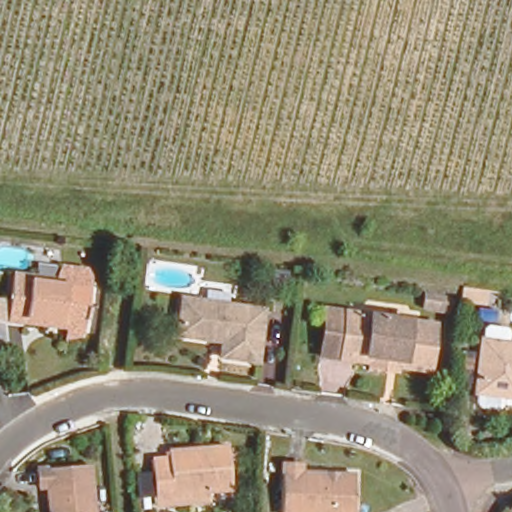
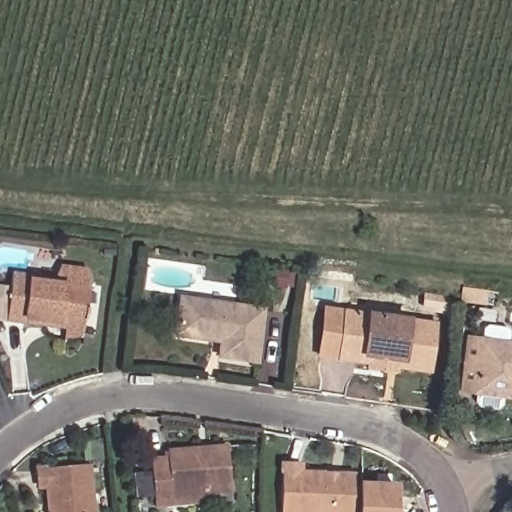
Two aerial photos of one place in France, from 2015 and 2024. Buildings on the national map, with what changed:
unchanged [(71,328),(61,327),(29,322),(28,327),(12,325),(13,320),(18,281),(18,277),(35,280),(34,283),(61,287),(68,270),(95,274),(93,291),(90,310),(94,310),(93,321),(89,321),(88,330),(87,340),(69,342),(71,328)]
unchanged [(486,290),(484,303),(458,300),(460,286),(486,290)]
unchanged [(455,300),(453,315),(425,312),(427,296),(455,300)]
unchanged [(177,336),(182,299),(263,310),(256,362),(220,357),(222,341),(213,340),(177,336)]
unchanged [(375,370),(376,364),(346,360),(326,357),(333,310),(352,312),(443,325),(436,372),(402,368),(401,373),(375,370)]
unchanged [(481,392),(489,341),(491,341),(492,331),(498,327),(512,329),(512,397),(508,396),(481,392)]
unchanged [(172,468),(172,465),(230,460),(234,504),(212,505),(212,512),(159,512),(155,470),(172,468)]
unchanged [(298,468),(298,475),(352,477),(351,512),(278,512),(280,467),(298,468)]
unchanged [(50,512),(49,493),(42,493),(41,476),(92,471),(95,512),(50,512)]
new [(402,512),(367,512),(368,488),(403,490),(402,512)]

